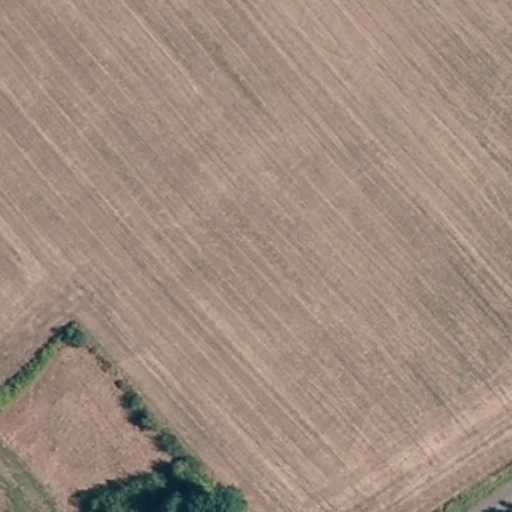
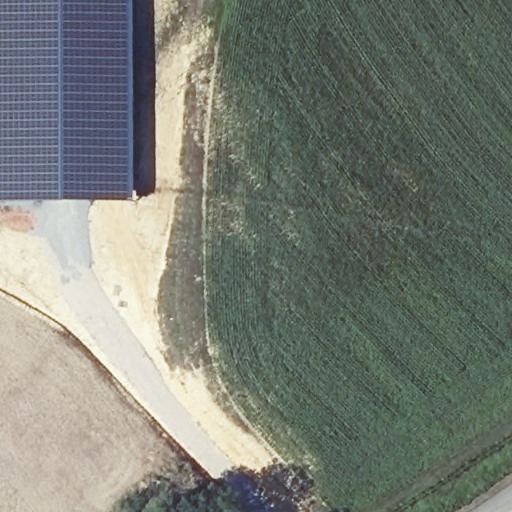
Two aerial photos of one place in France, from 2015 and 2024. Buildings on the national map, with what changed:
new [(135,201),(0,202),(0,0),(135,0),(135,201)]

